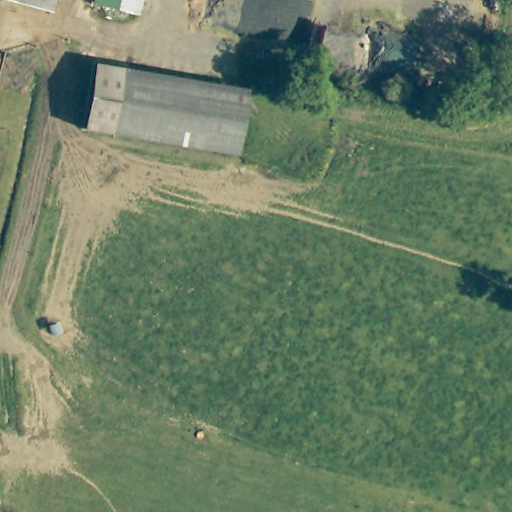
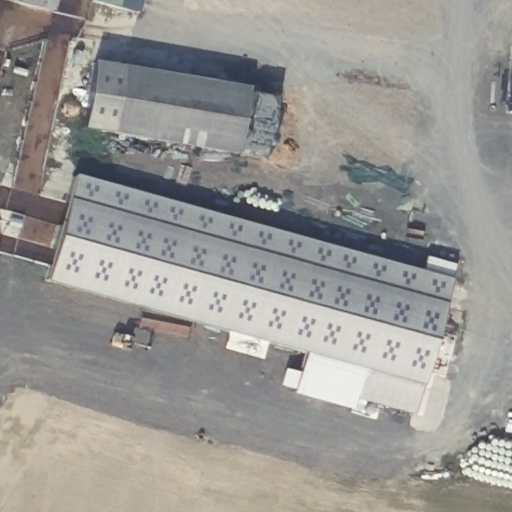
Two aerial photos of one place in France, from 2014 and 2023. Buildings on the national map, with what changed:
unchanged [(45,14),(0,1),(0,0),(49,0),(45,14)]
unchanged [(91,3),(92,0),(139,0),(135,13),(91,3)]
unchanged [(245,90),(232,157),(110,135),(80,130),(90,66),(119,70),(245,90)]
new [(512,117),(510,117),(512,95),(512,117)]
new [(411,417),(355,401),(362,371),(45,282),(74,175),(450,280),(411,417)]

